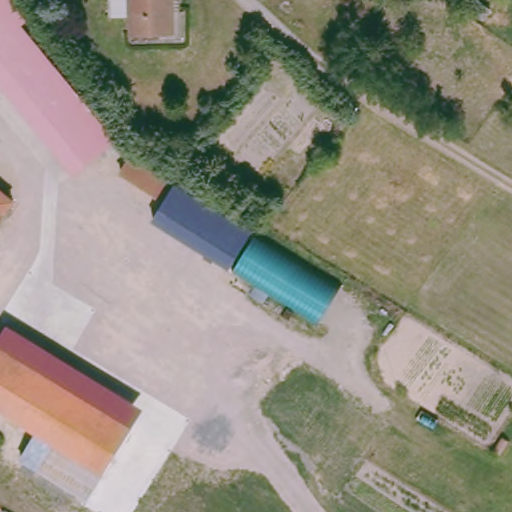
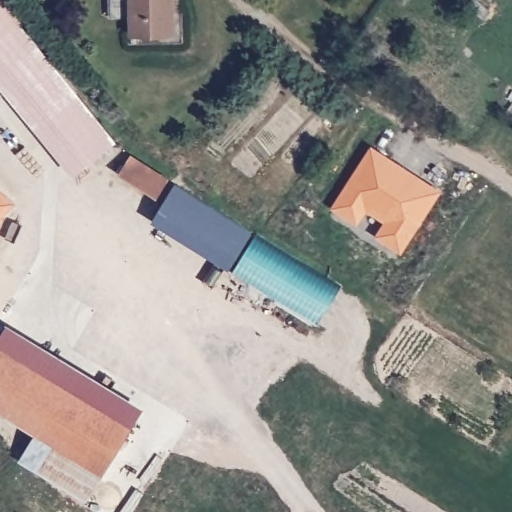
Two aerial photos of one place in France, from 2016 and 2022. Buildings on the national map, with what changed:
unchanged [(33,19),(23,27),(72,93),(43,116),(0,60),(0,0),(14,0),(33,19)]
unchanged [(125,28),(125,12),(111,12),(110,0),(168,0),(168,28),(125,28)]
unchanged [(43,116),(72,93),(108,139),(69,171),(0,88),(0,60),(43,116)]
new [(372,149),(405,172),(398,182),(409,189),(415,178),(438,194),(400,252),(377,237),(385,223),(365,209),(355,223),(332,208),(372,149)]
unchanged [(157,198),(119,174),(130,154),(166,177),(157,198)]
unchanged [(251,230),(228,269),(152,222),(174,183),(251,230)]
unchanged [(4,200),(0,206),(0,197),(4,200)]
unchanged [(320,321),(235,270),(255,234),(341,286),(320,321)]
unchanged [(60,480),(39,466),(52,442),(14,412),(0,399),(0,334),(6,327),(54,354),(60,346),(77,360),(64,387),(100,412),(60,480)]
unchanged [(100,412),(126,428),(85,496),(60,480),(100,412)]

